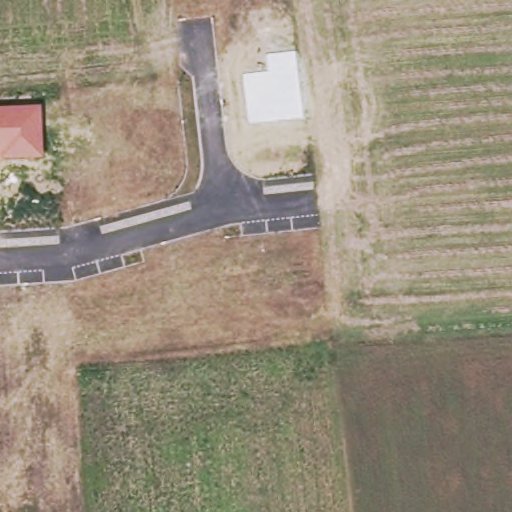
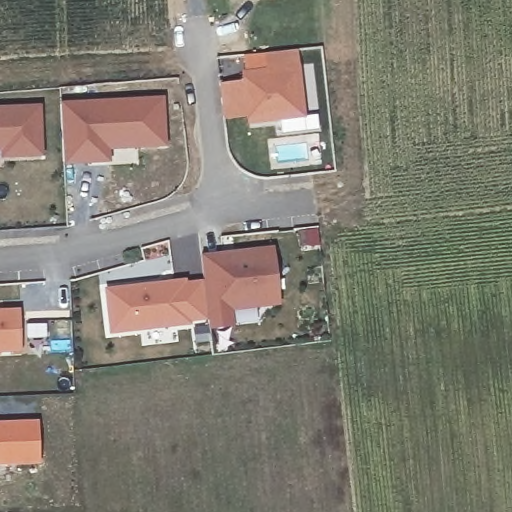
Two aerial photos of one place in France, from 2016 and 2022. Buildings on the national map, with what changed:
new [(245,75),(269,72),(268,55),(298,52),(304,119),(249,124),(249,118),(225,121),(221,86),(245,83),(245,75)]
new [(87,163),(63,165),(60,107),(160,100),(163,145),(107,149),(107,162),(87,163)]
unchanged [(40,106),(42,157),(0,158),(0,108),(40,106)]
new [(260,308),(232,311),(234,327),(210,330),(209,320),(205,284),(202,258),(274,250),(279,297),(280,306),(260,308)]
new [(186,283),(186,286),(205,284),(209,320),(190,322),(191,325),(112,334),(107,292),(186,283)]
new [(22,313),(23,351),(0,352),(0,314),(22,313)]
new [(40,421),(41,461),(0,463),(0,422),(40,421)]

